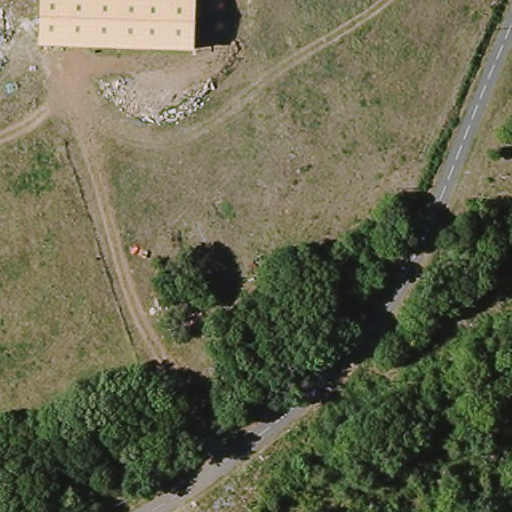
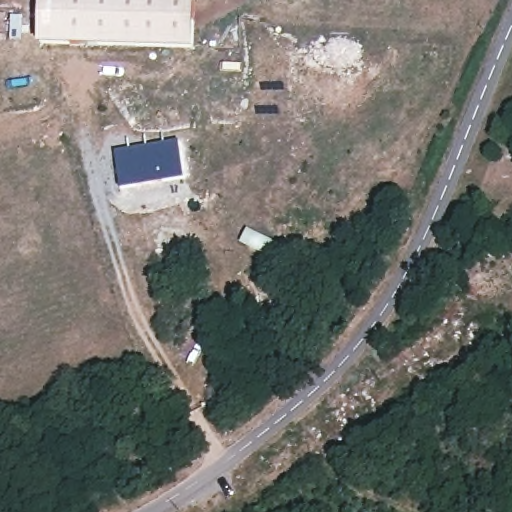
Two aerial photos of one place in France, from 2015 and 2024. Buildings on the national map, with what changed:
unchanged [(41,0),(196,0),(194,50),(40,45),(41,0)]
new [(179,140),(186,178),(118,188),(112,147),(179,140)]

